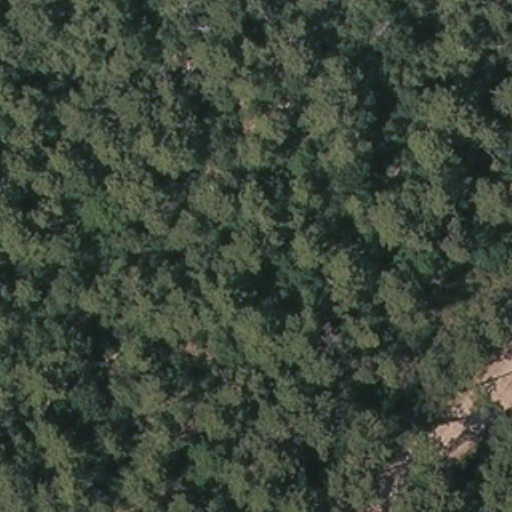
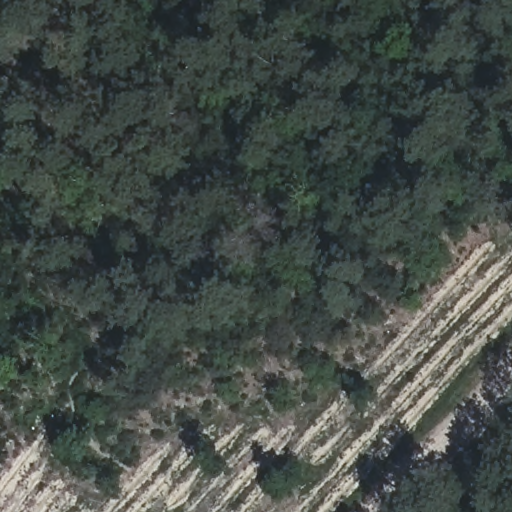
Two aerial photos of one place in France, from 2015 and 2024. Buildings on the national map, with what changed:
unchanged [(441,499),(455,488),(467,501),(456,512),(441,499)]

